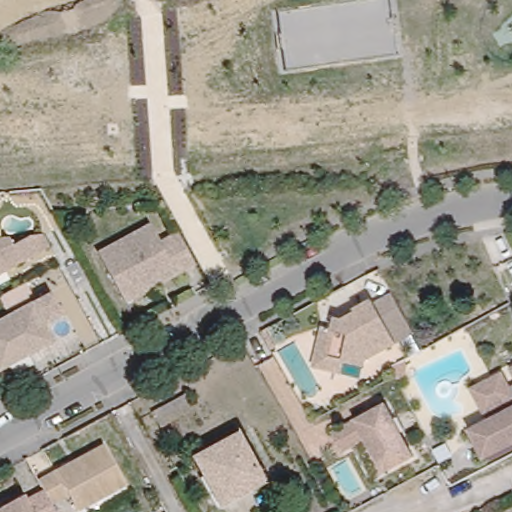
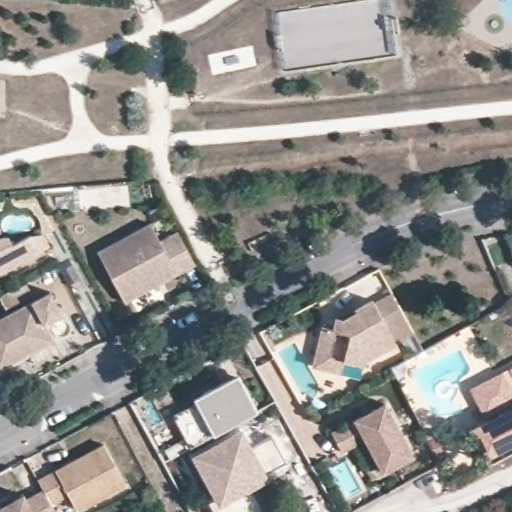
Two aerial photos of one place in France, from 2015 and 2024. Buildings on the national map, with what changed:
unchanged [(122,301),(95,250),(148,223),(156,239),(174,231),(193,264),(174,274),(155,284),(122,301)]
unchanged [(7,234),(12,241),(27,234),(37,252),(0,271),(0,235),(7,234)]
unchanged [(52,286),(65,308),(47,319),(56,336),(0,367),(0,366),(0,316),(52,286)]
unchanged [(390,338),(366,351),(366,355),(346,354),(345,368),(315,365),(318,324),(330,325),(331,313),(337,314),(351,306),(349,304),(367,294),(390,338)]
unchanged [(264,335),(268,332),(276,345),(271,348),(264,335)]
unchanged [(469,423),(506,404),(494,378),(509,370),(504,361),(512,357),(512,439),(484,452),(469,423)]
new [(258,410),(214,432),(190,447),(170,457),(165,450),(185,438),(174,414),(197,402),(195,396),(238,374),(258,410)]
demolished [(185,392),(194,407),(162,425),(153,410),(185,392)]
unchanged [(386,401),(412,445),(381,462),(368,439),(344,450),(332,430),(386,401)]
unchanged [(215,490),(195,455),(239,429),(265,475),(248,484),(219,499),(215,490)]
unchanged [(88,512),(80,512),(72,498),(56,508),(48,494),(43,485),(61,475),(78,465),(107,449),(129,487),(88,512)]
unchanged [(18,506),(28,500),(31,504),(48,494),(56,508),(58,512),(0,512),(0,508),(15,500),(18,506)]

